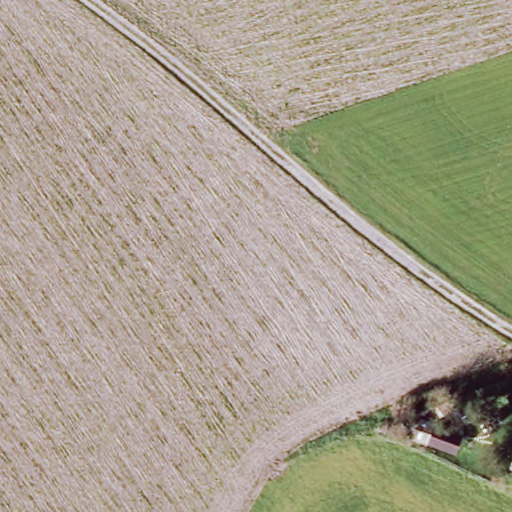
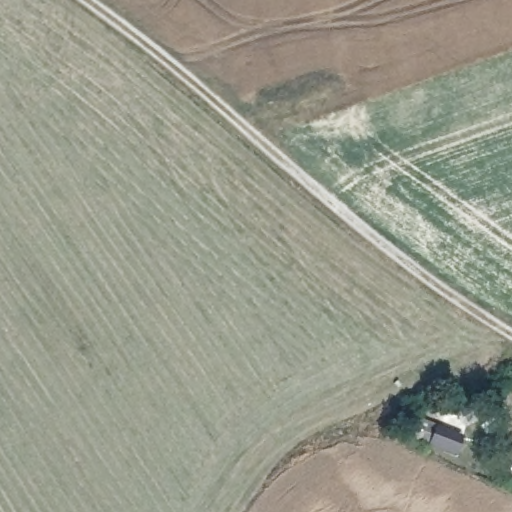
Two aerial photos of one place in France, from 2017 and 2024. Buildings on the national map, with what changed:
unchanged [(415,421),(435,427),(428,447),(407,441),(415,421)]

